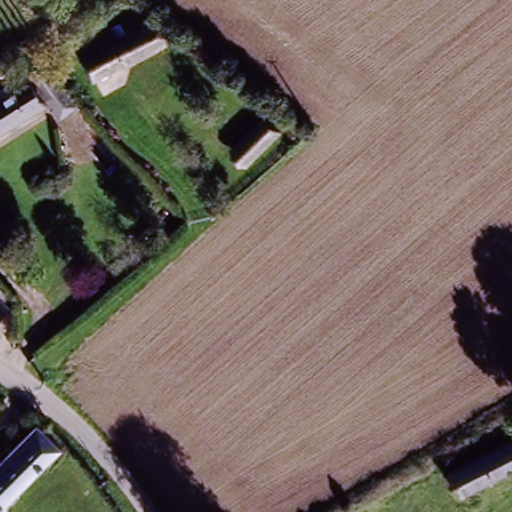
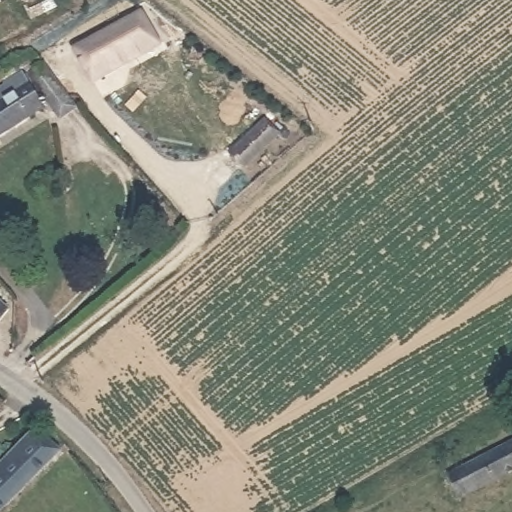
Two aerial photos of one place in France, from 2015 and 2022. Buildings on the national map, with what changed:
unchanged [(163,47),(92,77),(83,57),(153,26),(163,47)]
unchanged [(0,84),(0,70),(7,79),(0,84)]
unchanged [(37,74),(76,117),(68,124),(30,81),(37,74)]
unchanged [(45,112),(0,139),(0,101),(30,86),(45,112)]
unchanged [(255,159),(239,141),(262,119),(279,136),(255,159)]
unchanged [(0,305),(7,311),(0,319),(0,305)]
unchanged [(61,457),(0,509),(0,465),(41,430),(61,457)]
unchanged [(454,502),(443,481),(512,441),(512,468),(454,502)]

